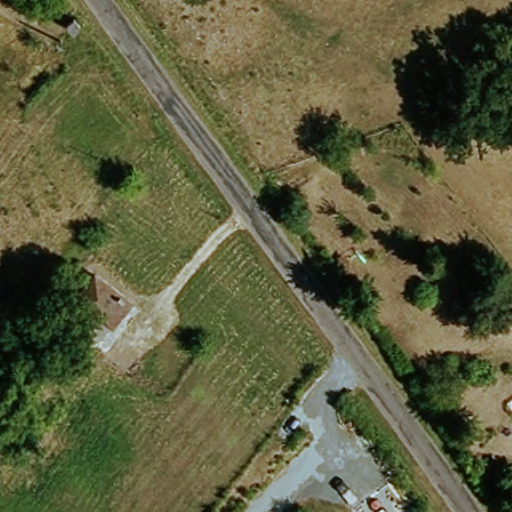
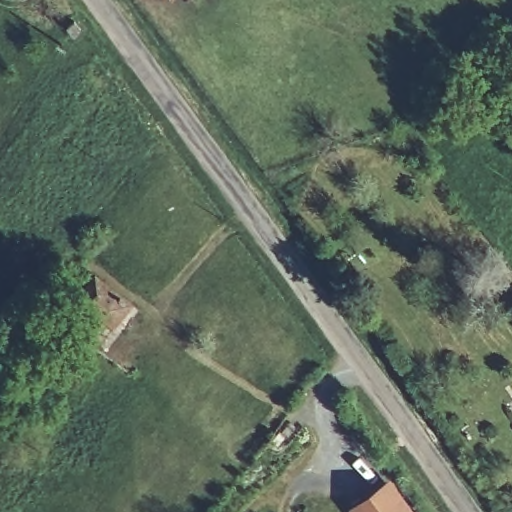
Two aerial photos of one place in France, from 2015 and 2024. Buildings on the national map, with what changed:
unchanged [(122,333),(84,304),(101,281),(140,310),(122,333)]
new [(346,511),(388,480),(412,512),(347,512),(346,511)]

